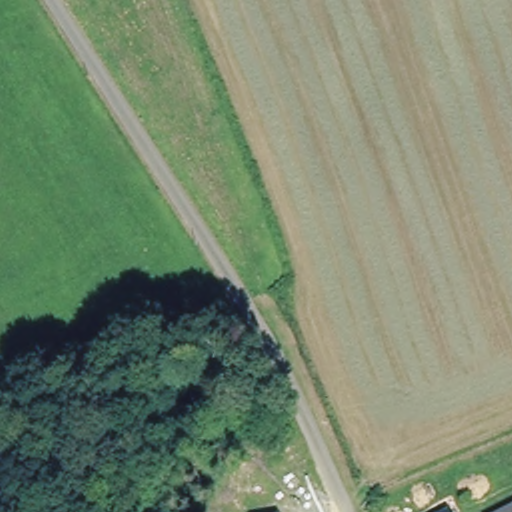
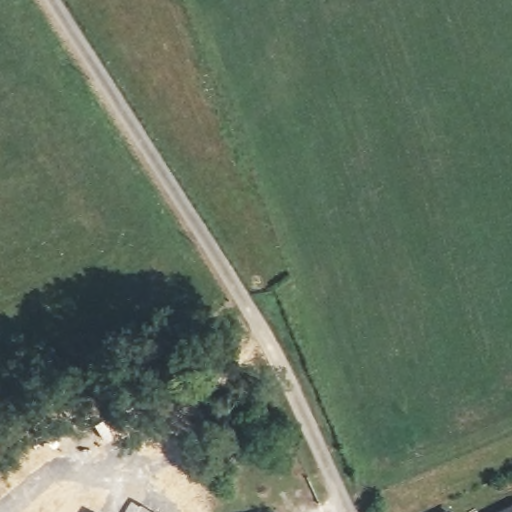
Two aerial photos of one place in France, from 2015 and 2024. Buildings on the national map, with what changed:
new [(152,512),(124,512),(131,500),(152,512)]
unchanged [(512,512),(492,512),(512,502),(512,512)]
unchanged [(453,512),(439,512),(450,506),(453,512)]

